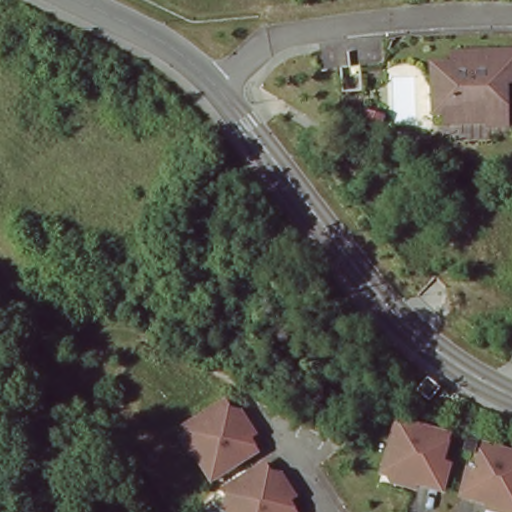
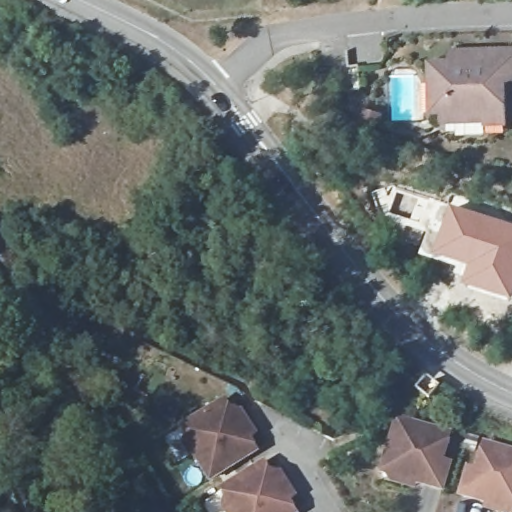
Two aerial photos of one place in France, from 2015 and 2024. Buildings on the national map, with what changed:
unchanged [(446,112),(434,113),(433,62),(453,61),(453,50),(512,49),(512,79),(495,80),(495,89),(507,89),(508,110),(508,124),(489,125),(489,120),(446,122),(446,112)]
new [(512,223),(512,299),(470,286),(462,280),(468,267),(432,255),(447,203),(512,223)]
unchanged [(419,359),(432,369),(422,381),(409,370),(419,359)]
unchanged [(173,436),(180,432),(172,420),(214,394),(223,408),(229,404),(232,409),(244,428),(238,432),(246,444),(217,463),(200,473),(183,446),(181,448),(173,436)]
unchanged [(382,474),(384,467),(374,464),(390,410),(441,425),(434,452),(441,454),(433,481),(407,474),(405,481),(382,474)]
unchanged [(478,494),(452,487),(460,459),(468,462),(476,436),(512,446),(512,501),(511,504),(501,502),(499,509),(476,502),(478,494)]
unchanged [(218,498),(224,494),(217,482),(259,457),(268,471),(274,467),(277,472),(289,491),(282,494),(290,507),(281,512),(229,512),(227,508),(225,509),(218,498)]

